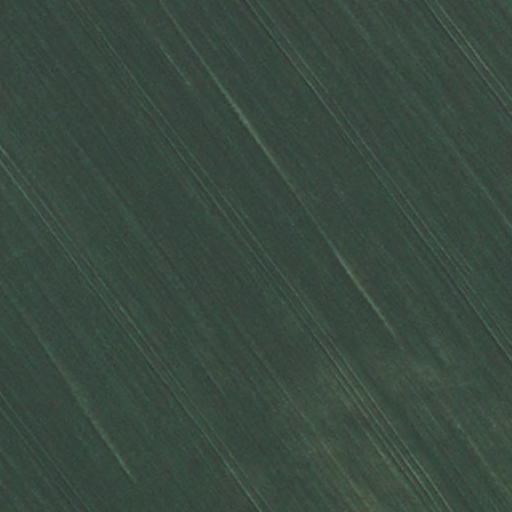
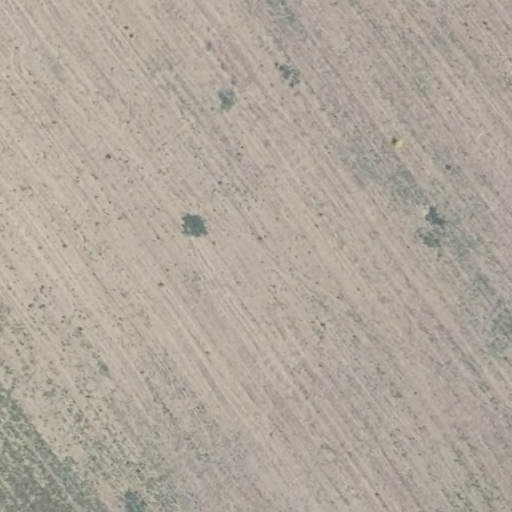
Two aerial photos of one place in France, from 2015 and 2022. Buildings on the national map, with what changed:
[]

